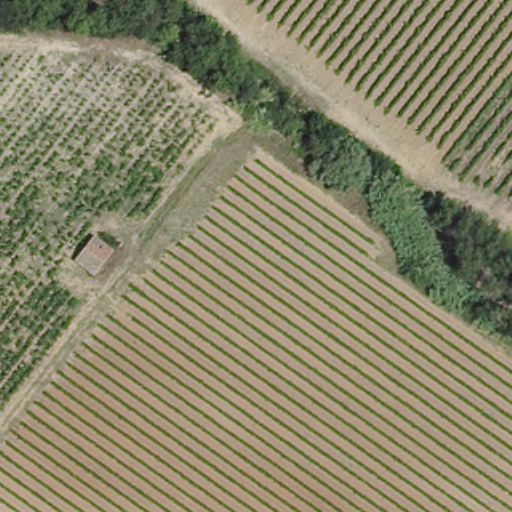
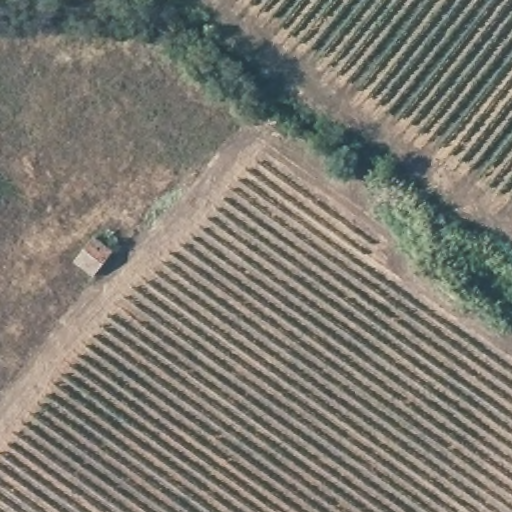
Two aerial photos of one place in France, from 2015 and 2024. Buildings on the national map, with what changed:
unchanged [(93,279),(73,265),(90,241),(111,257),(93,279)]

